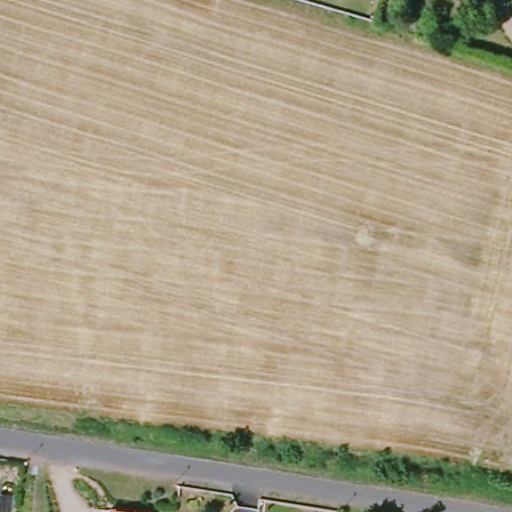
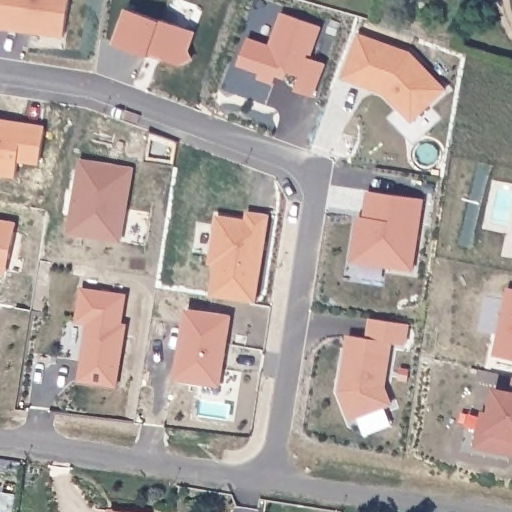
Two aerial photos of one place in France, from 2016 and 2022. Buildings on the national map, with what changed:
new [(3,29),(4,24),(0,23),(0,0),(70,0),(64,38),(3,29)]
new [(129,10),(195,34),(188,52),(192,61),(180,67),(167,62),(165,57),(153,53),(151,58),(117,46),(129,10)]
new [(295,90),(300,76),(289,72),(286,80),(275,76),(273,84),(257,79),(259,73),(240,67),(249,37),(270,45),(281,12),(321,27),(310,57),(326,63),(313,96),(295,90)]
new [(355,53),(360,55),(365,40),(411,56),(445,92),(413,123),(385,94),(345,80),(355,53)]
new [(16,176),(0,173),(0,119),(25,124),(24,127),(44,130),(38,164),(19,161),(16,176)]
new [(73,218),(76,216),(77,211),(74,210),(82,162),(133,171),(120,243),(70,235),(73,218)]
new [(360,219),(366,220),(370,194),(424,202),(413,272),(359,264),(354,258),(358,237),(360,219)]
new [(216,217),(246,221),(247,214),(266,217),(252,303),(210,297),(215,263),(209,262),(216,217)]
new [(0,222),(11,225),(4,259),(2,272),(0,271),(0,222)]
new [(79,381),(87,324),(76,322),(81,287),(128,294),(123,323),(127,324),(117,386),(79,381)]
new [(495,354),(507,287),(512,288),(512,358),(495,354)]
new [(185,310),(228,316),(218,385),(174,378),(185,310)]
new [(350,419),(340,391),(347,335),(366,338),(370,319),(410,326),(407,347),(393,346),(385,390),(393,407),(350,419)]
new [(480,416),(490,417),(495,387),(512,390),(512,455),(475,448),(480,416)]
unchanged [(117,512),(106,512),(106,511),(117,512)]

